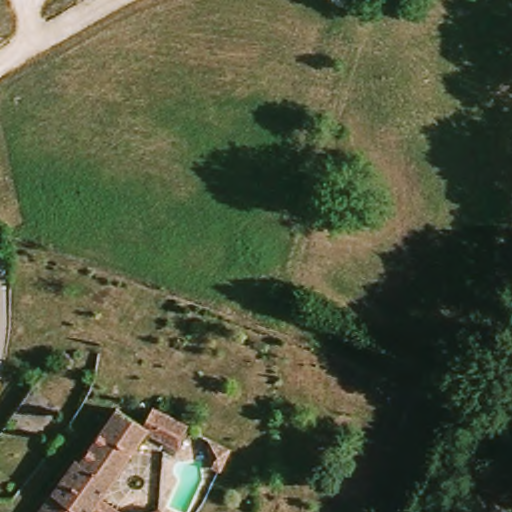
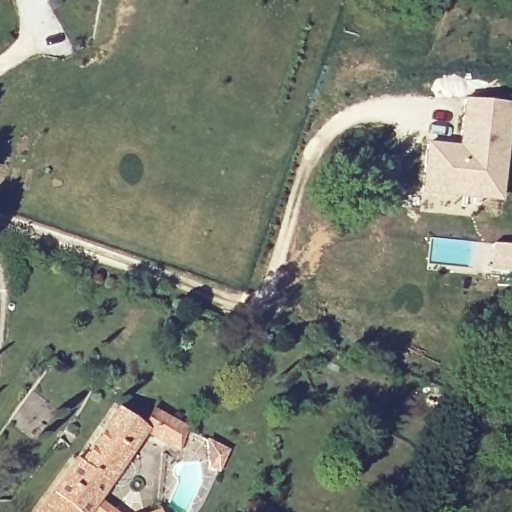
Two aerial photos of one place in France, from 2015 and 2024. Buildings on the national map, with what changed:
new [(463,151),(468,102),(512,106),(512,111),(502,202),(425,194),(430,147),(463,151)]
unchanged [(146,430),(143,427),(152,408),(188,427),(178,451),(144,432),(146,430)]
unchanged [(73,461),(78,464),(115,410),(143,427),(146,430),(144,432),(99,498),(118,512),(37,512),(51,492),(73,461)]
unchanged [(160,512),(155,512),(160,511),(160,512)]

